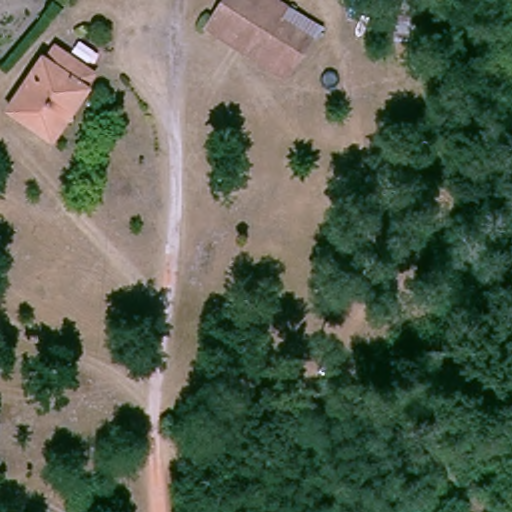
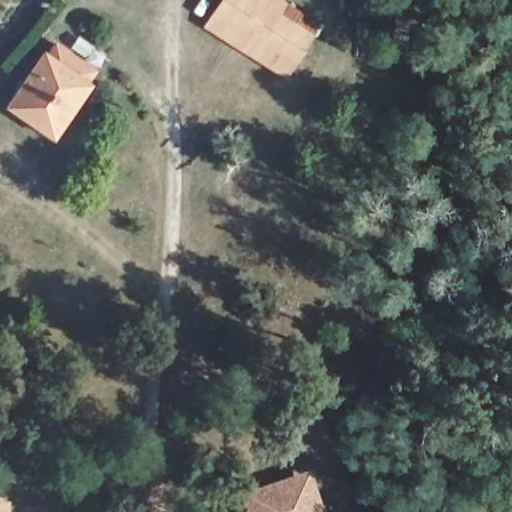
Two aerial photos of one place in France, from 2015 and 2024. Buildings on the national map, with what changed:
unchanged [(214,15),(223,0),(276,0),(315,24),(292,61),(214,15)]
unchanged [(292,61),(285,75),(206,29),(214,15),(292,61)]
unchanged [(52,43),(92,71),(84,82),(87,85),(50,140),(2,107),(41,51),(44,54),(52,43)]
new [(246,510),(241,492),(310,469),(324,512),(240,512),(246,510)]
new [(7,498),(8,512),(0,512),(0,499),(7,498)]

